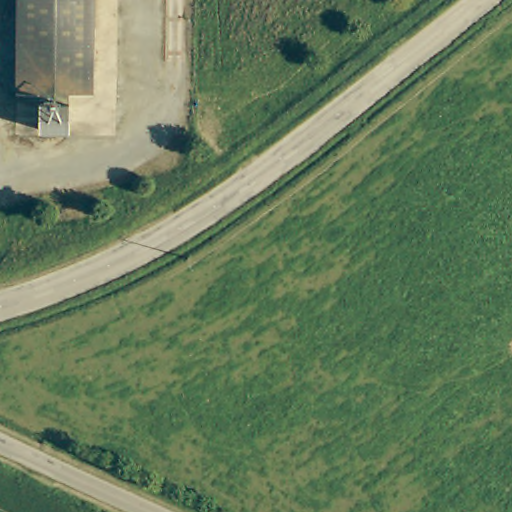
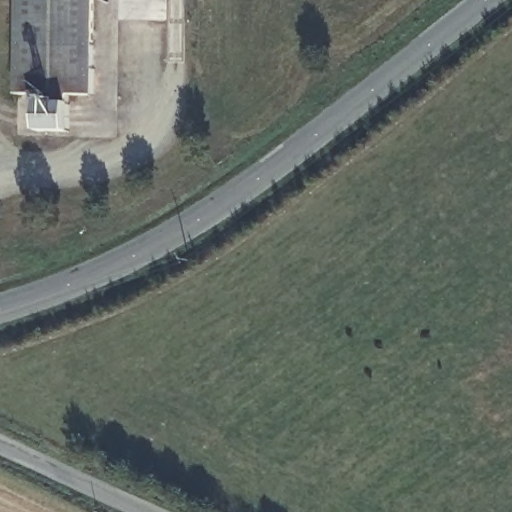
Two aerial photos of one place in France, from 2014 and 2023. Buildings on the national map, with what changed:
unchanged [(14,0),(92,0),(93,101),(71,101),(39,102),(18,102),(14,0)]
unchanged [(72,142),(41,142),(39,102),(71,101),(72,142)]

